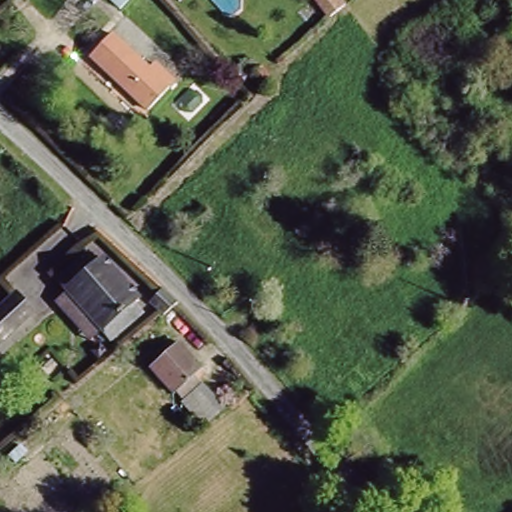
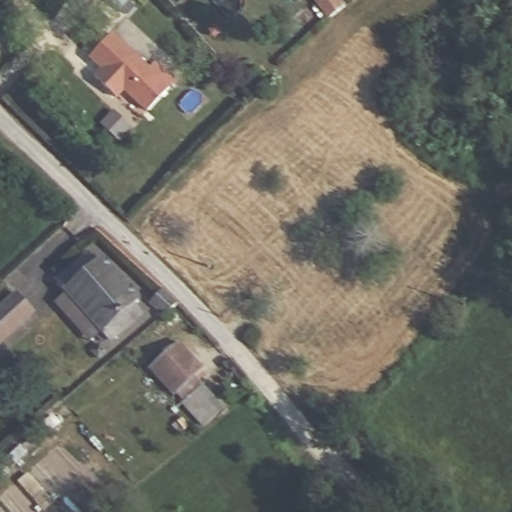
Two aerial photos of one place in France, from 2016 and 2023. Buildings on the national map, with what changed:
unchanged [(108,0),(128,0),(119,10),(108,0)]
unchanged [(148,109),(91,55),(112,33),(170,86),(148,109)]
unchanged [(260,66),(268,74),(271,78),(261,88),(249,76),(260,66)]
unchanged [(117,339),(65,288),(89,263),(140,314),(121,336),(117,339)]
unchanged [(33,315),(0,343),(0,304),(12,293),(33,315)]
unchanged [(222,405),(202,422),(147,369),(176,342),(204,370),(222,405)]

